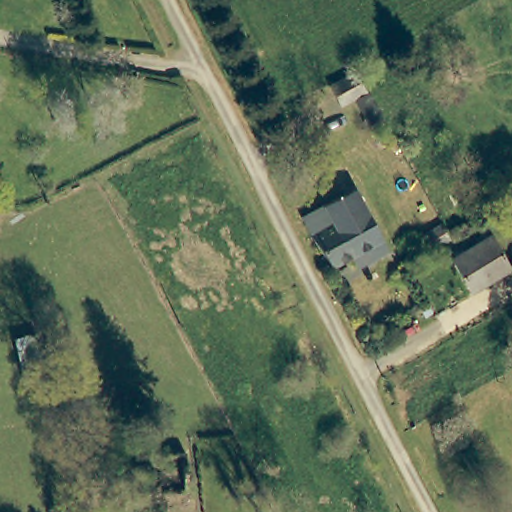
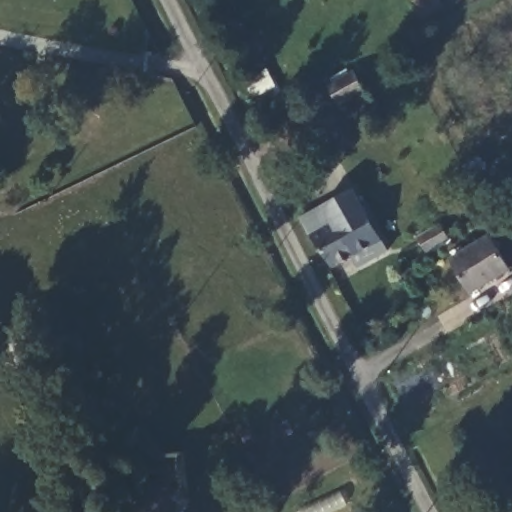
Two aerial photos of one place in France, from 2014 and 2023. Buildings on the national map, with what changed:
unchanged [(355,60),(367,81),(343,95),(330,73),(355,60)]
unchanged [(355,181),(386,242),(358,258),(352,249),(332,261),(312,228),(303,212),(303,211),(355,181)]
unchanged [(445,222),(452,235),(430,248),(422,236),(445,222)]
unchanged [(470,292),(452,262),(490,239),(508,270),(470,292)]
unchanged [(511,311),(512,310),(512,312),(511,311)]

